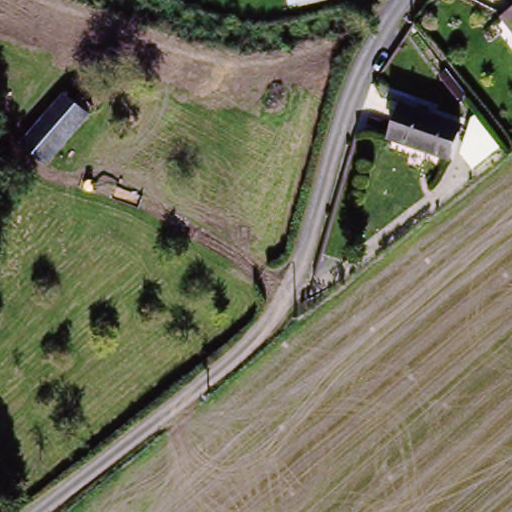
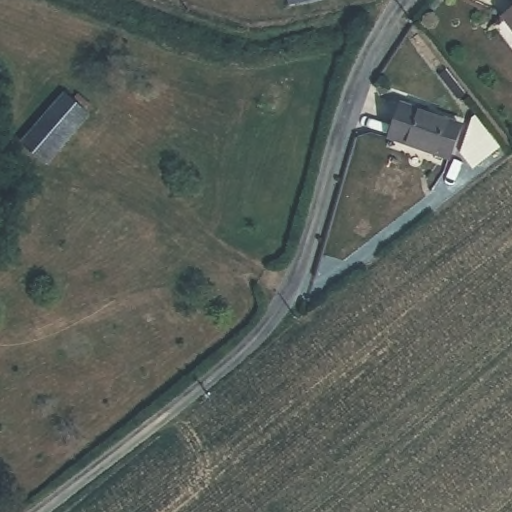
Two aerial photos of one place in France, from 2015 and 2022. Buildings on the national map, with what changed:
unchanged [(291,17),(283,19),(280,0),(329,0),(331,11),(291,17)]
unchanged [(512,16),(512,25),(507,20),(512,16)]
unchanged [(87,116),(43,167),(19,149),(63,96),(87,116)]
unchanged [(390,144),(400,110),(460,126),(451,155),(438,151),(437,157),(390,144)]

